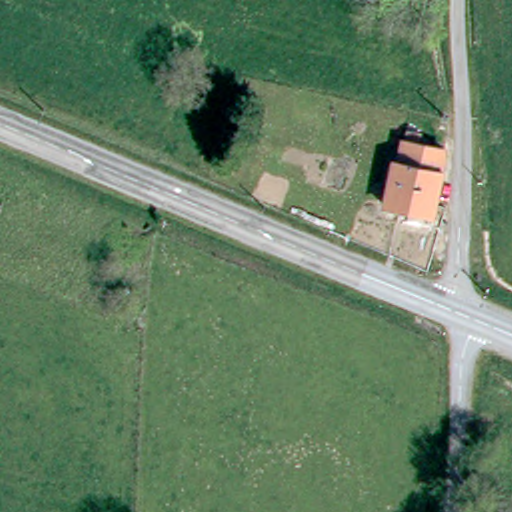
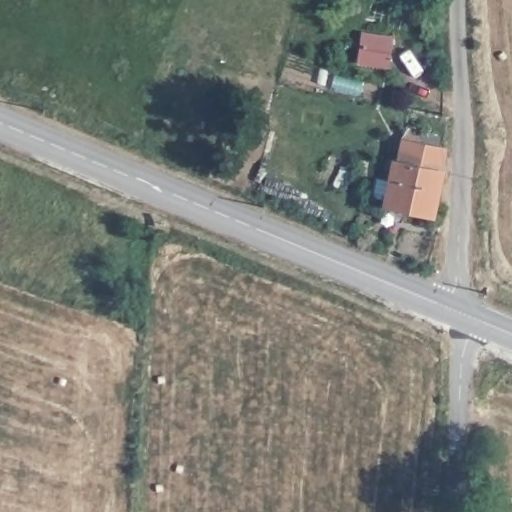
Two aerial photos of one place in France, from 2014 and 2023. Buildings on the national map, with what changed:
new [(355,64),(360,31),(394,36),(388,69),(355,64)]
unchanged [(435,218),(385,207),(395,161),(400,163),(404,142),(406,131),(422,134),(420,145),(445,150),(442,172),(445,172),(435,218)]

